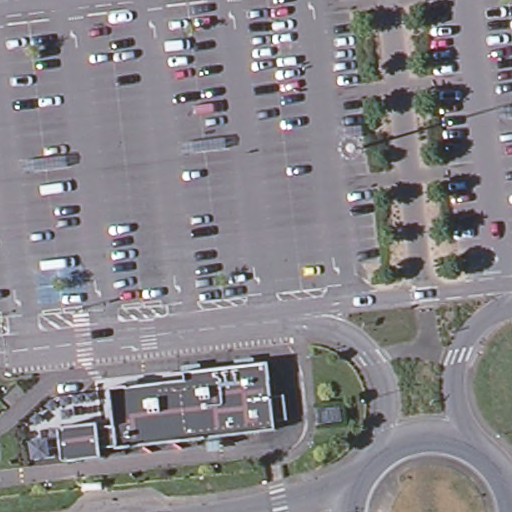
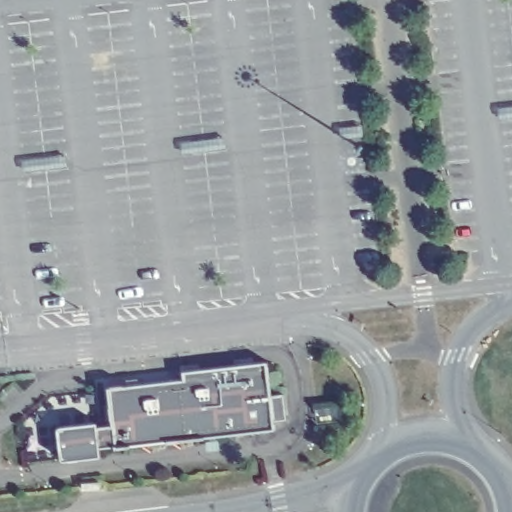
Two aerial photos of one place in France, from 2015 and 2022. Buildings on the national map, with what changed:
unchanged [(184,380),(183,365),(200,363),(201,369),(236,365),(236,360),(254,357),(256,363),(269,362),(273,395),(285,393),(288,421),(275,423),(276,429),(100,449),(101,457),(61,462),(57,428),(98,423),(99,428),(113,426),(110,387),(184,380)]

